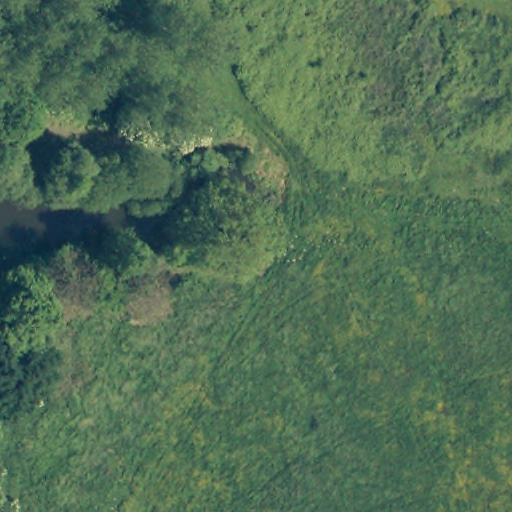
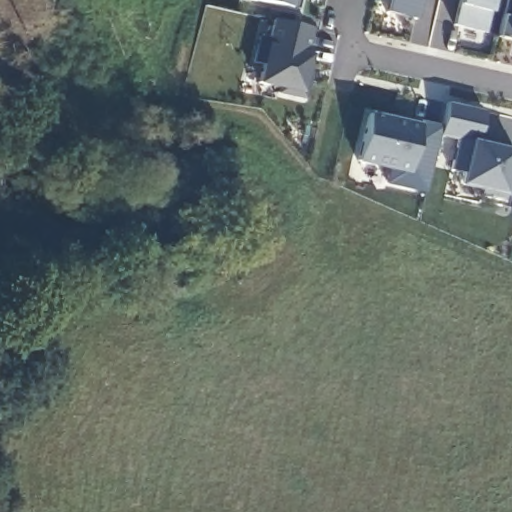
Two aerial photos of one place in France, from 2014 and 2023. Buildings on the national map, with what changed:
new [(300,10),(290,8),(254,0),(302,0),(300,10)]
new [(419,20),(387,13),(389,0),(422,0),(419,20)]
new [(428,1),(425,0),(428,0),(428,1)]
new [(492,16),(486,32),(454,25),(461,7),(457,6),(458,0),(495,0),(492,16)]
new [(505,15),(512,16),(512,39),(500,36),(505,15)]
new [(307,52),(311,53),(307,70),(313,71),(307,98),(282,93),(282,90),(259,84),(267,43),(270,44),(274,20),(313,27),(307,52)]
new [(512,149),(512,170),(507,194),(505,199),(485,195),(486,190),(461,184),(464,172),(451,170),(459,138),(442,134),(429,192),(388,183),(391,169),(358,161),(371,112),(415,122),(417,118),(441,123),(447,103),(486,110),(482,142),(512,149)]

